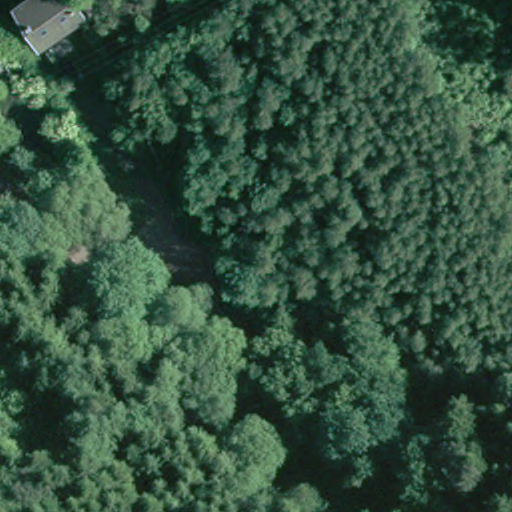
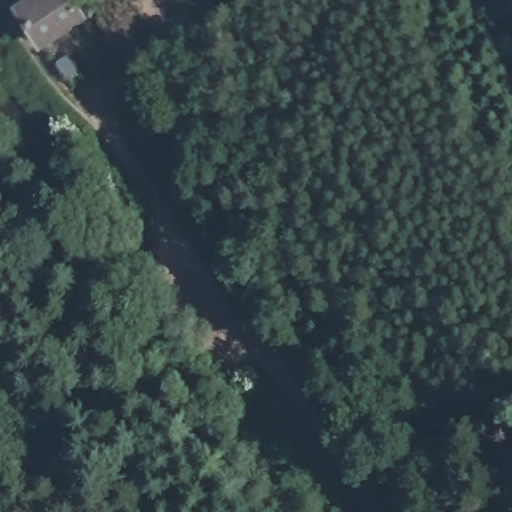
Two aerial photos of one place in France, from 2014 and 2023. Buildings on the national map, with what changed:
unchanged [(13,0),(73,0),(81,14),(34,40),(12,1),(13,0)]

